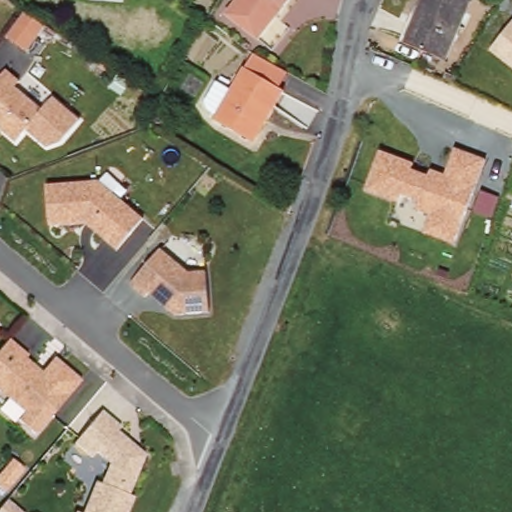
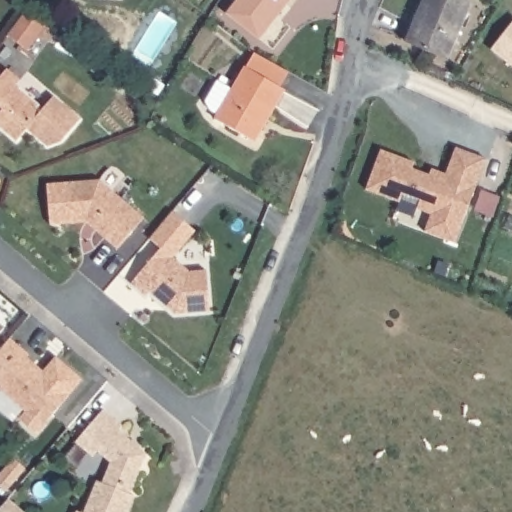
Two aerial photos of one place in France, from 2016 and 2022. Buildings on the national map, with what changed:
unchanged [(260,40),(235,21),(229,16),(241,0),(293,0),(260,40)]
unchanged [(471,1),(445,59),(405,40),(423,0),(469,0),(471,1)]
unchanged [(491,50),(512,24),(512,65),(491,50)]
unchanged [(257,140),(220,117),(222,113),(214,108),(210,100),(221,80),(236,88),(247,68),(250,65),(257,54),(285,68),(290,71),(283,84),(282,87),(286,90),(257,140)]
unchanged [(61,94),(82,114),(59,145),(46,146),(28,131),(16,142),(0,126),(0,82),(11,71),(44,109),(61,94)]
unchanged [(450,173),(457,147),(490,159),(457,245),(424,234),(431,214),(415,209),(419,200),(405,195),(402,204),(368,190),(382,150),(450,173)]
unchanged [(104,176),(148,217),(119,250),(91,224),(49,226),(47,184),(104,176)]
unchanged [(180,310),(136,280),(162,248),(189,270),(208,270),(211,310),(180,310)]
unchanged [(60,356),(85,383),(39,437),(20,421),(28,412),(0,388),(0,353),(13,336),(47,370),(60,356)]
unchanged [(99,452),(79,437),(105,406),(125,423),(122,427),(149,451),(133,492),(136,493),(130,512),(85,512),(102,476),(99,452)]
unchanged [(85,512),(77,512),(77,510),(85,512)]

